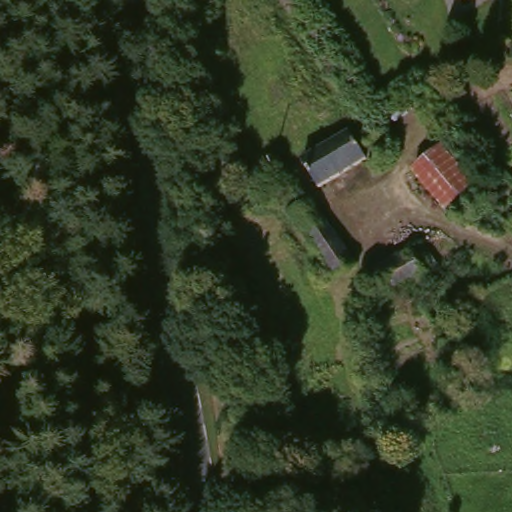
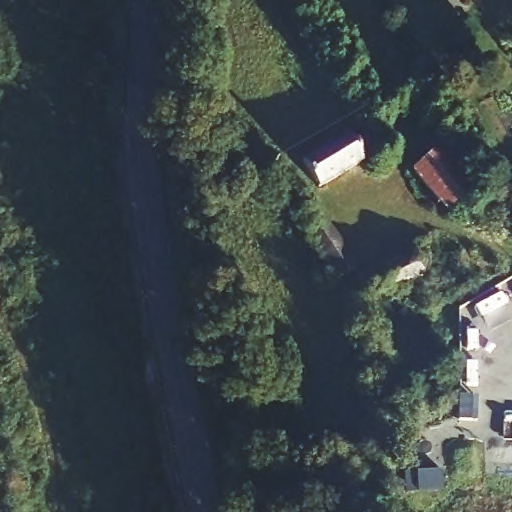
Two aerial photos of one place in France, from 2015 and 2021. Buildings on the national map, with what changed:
unchanged [(304,153),(347,126),(365,154),(321,181),(304,153)]
unchanged [(416,163),(444,138),(478,179),(449,204),(416,163)]

